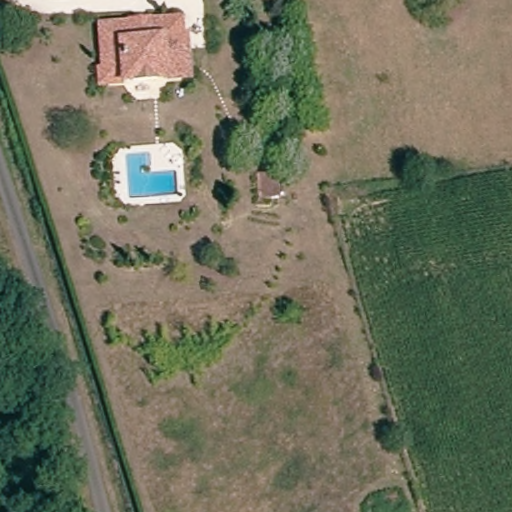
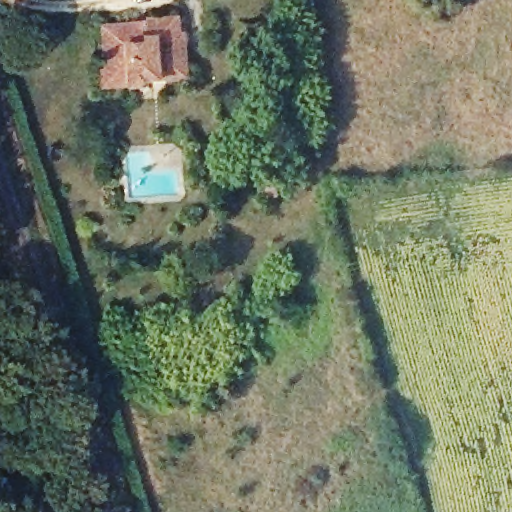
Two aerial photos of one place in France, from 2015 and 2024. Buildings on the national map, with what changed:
unchanged [(199,77),(109,80),(109,65),(114,64),(112,37),(112,21),(129,20),(191,19),(192,35),(196,35),(199,77)]
unchanged [(277,170),(277,190),(278,195),(260,196),(260,192),(260,170),(277,170)]

